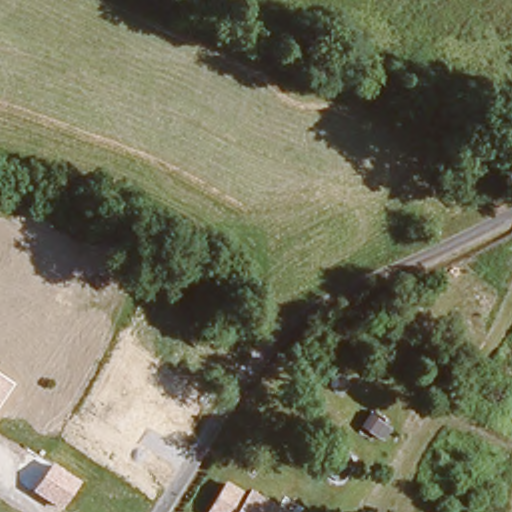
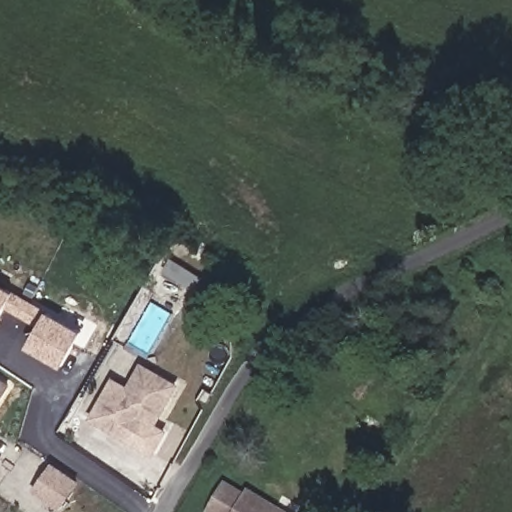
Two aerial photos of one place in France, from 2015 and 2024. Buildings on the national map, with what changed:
new [(0,283),(84,331),(63,366),(28,346),(39,326),(6,308),(0,319),(0,283)]
new [(155,430),(141,422),(130,443),(89,419),(114,376),(128,384),(142,360),(182,384),(155,430)]
unchanged [(0,394),(0,375),(9,381),(0,394)]
new [(61,510),(33,491),(53,461),(81,481),(61,510)]
unchanged [(234,512),(250,490),(281,512),(234,512)]

